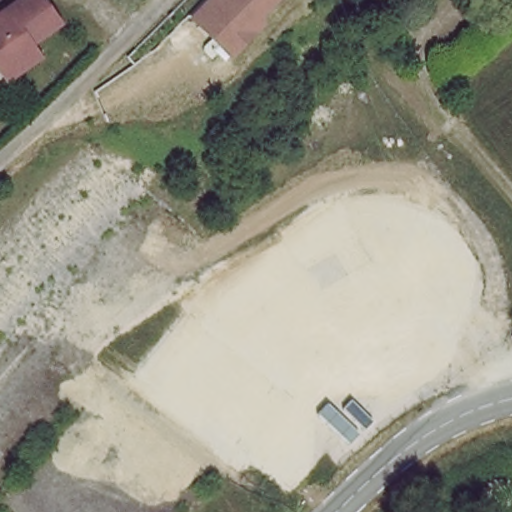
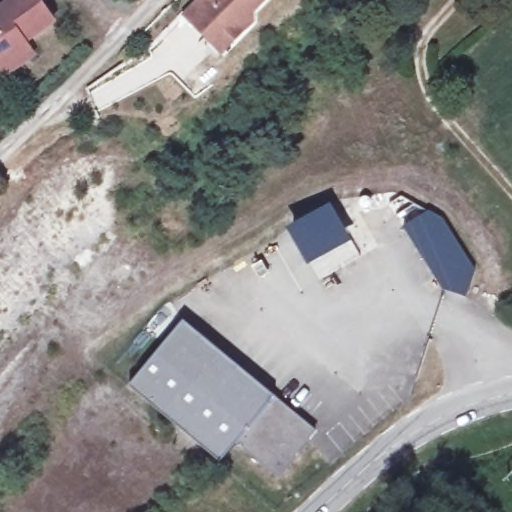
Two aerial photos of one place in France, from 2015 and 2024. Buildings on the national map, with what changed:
unchanged [(5,79),(0,72),(0,11),(14,0),(36,0),(53,22),(25,44),(35,57),(5,79)]
unchanged [(256,16),(260,24),(223,62),(184,21),(205,0),(273,0),(256,16)]
new [(309,267),(288,230),(332,206),(353,243),(309,267)]
new [(403,228),(429,212),(442,218),(475,270),(466,298),(444,292),(403,228)]
new [(316,431),(280,476),(238,442),(221,462),(132,387),(184,321),(274,396),(316,431)]

